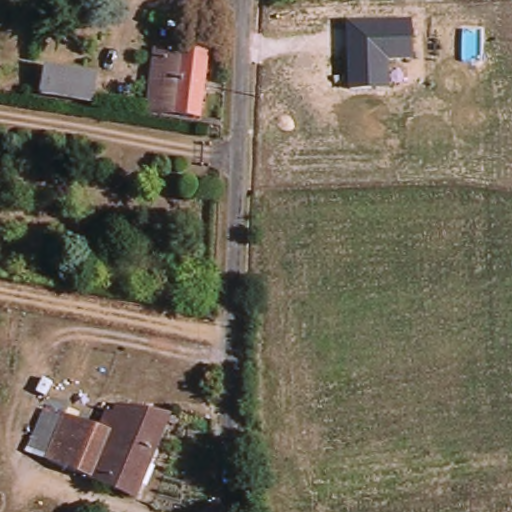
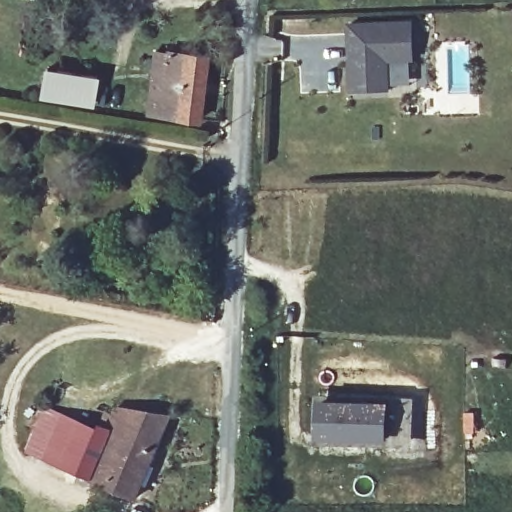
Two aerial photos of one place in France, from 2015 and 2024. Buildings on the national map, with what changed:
unchanged [(412,19),(413,61),(392,62),(392,88),(348,90),(346,22),(412,19)]
unchanged [(210,55),(201,118),(145,109),(155,46),(210,55)]
unchanged [(42,68),(90,76),(85,99),(39,92),(42,68)]
new [(313,445),(315,396),(413,398),(411,446),(313,445)]
unchanged [(101,423),(112,405),(120,408),(124,400),(172,418),(169,427),(161,424),(132,498),(65,471),(86,417),(101,423)]
unchanged [(65,471),(25,455),(47,402),(86,417),(65,471)]

